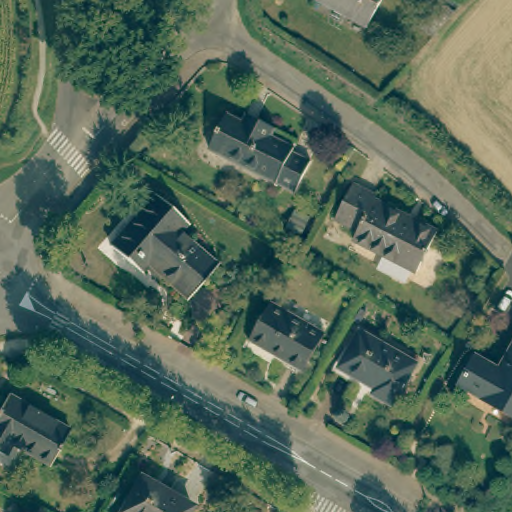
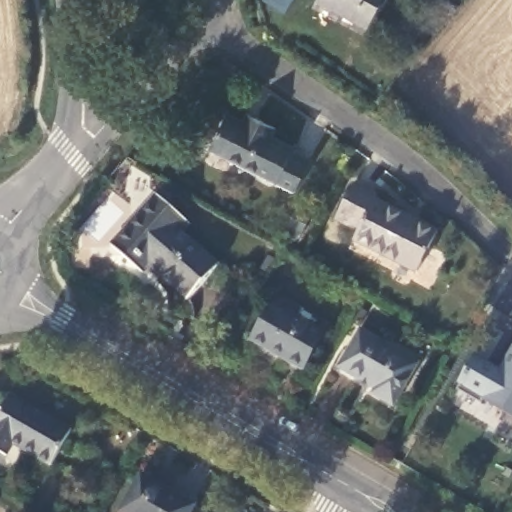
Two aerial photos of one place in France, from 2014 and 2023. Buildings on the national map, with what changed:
unchanged [(361,29),(312,2),(313,0),(377,0),(361,29)]
unchanged [(209,143),(226,109),(242,116),(246,108),(266,117),(245,161),(209,143)]
unchanged [(266,117),(275,122),(271,130),(293,141),(291,145),(310,155),(295,185),(245,161),(266,117)]
unchanged [(145,260),(138,269),(110,243),(154,192),(183,217),(176,226),(183,232),(153,267),(145,260)]
unchanged [(418,280),(399,271),(354,249),(358,240),(334,228),(352,193),(378,206),(376,211),(415,232),(416,230),(422,232),(437,241),(418,280)]
unchanged [(183,232),(218,265),(188,299),(153,267),(183,232)]
unchanged [(323,332),(302,368),(251,339),(272,302),(323,332)]
unchanged [(419,363),(394,405),(372,392),(375,387),(338,365),(358,328),(419,363)]
unchanged [(466,370),(470,361),(494,375),(512,343),(512,423),(455,390),(466,370)]
unchanged [(51,458),(33,449),(12,437),(4,450),(0,448),(0,404),(9,389),(53,415),(70,424),(51,458)]
unchanged [(186,512),(119,512),(140,476),(191,505),(186,512)]

